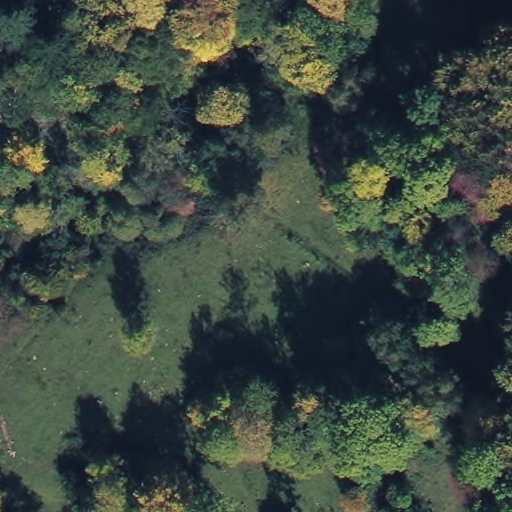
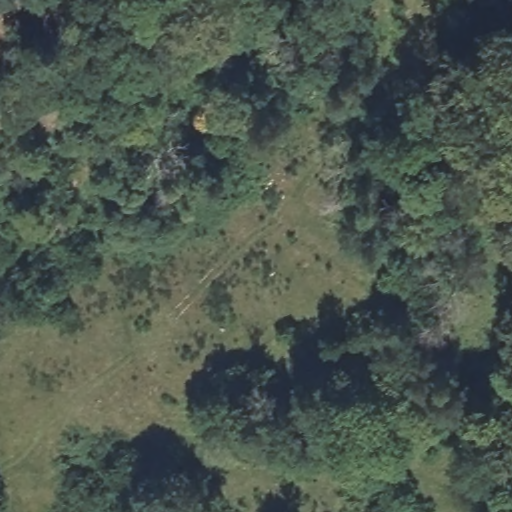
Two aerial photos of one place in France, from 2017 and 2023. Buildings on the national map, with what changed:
[]

